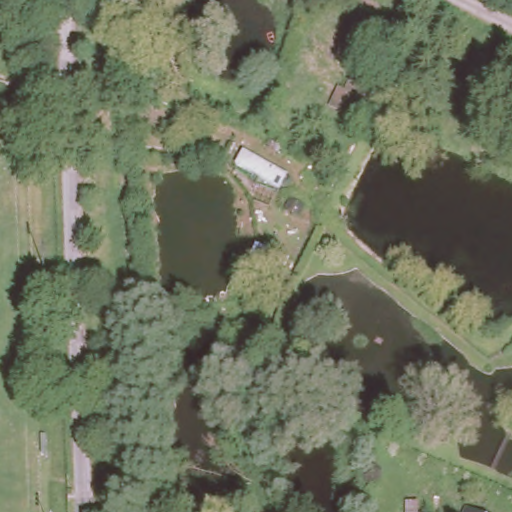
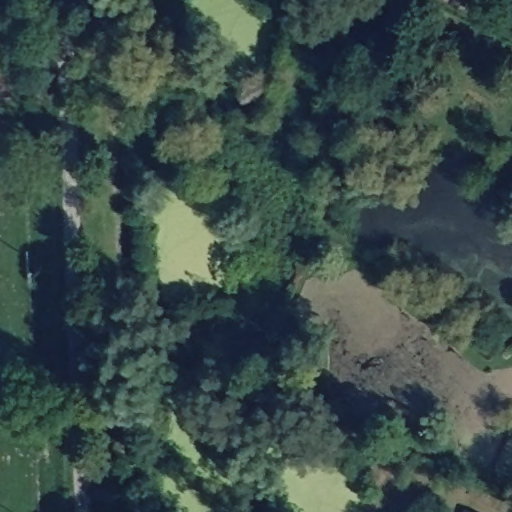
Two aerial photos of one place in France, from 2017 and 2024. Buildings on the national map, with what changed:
unchanged [(335,83),(343,86),(353,69),(381,81),(362,123),(325,106),(335,83)]
unchanged [(274,97),(292,104),(288,118),(279,115),(272,134),(260,129),(274,97)]
unchanged [(242,145),(289,173),(280,189),(232,162),(242,145)]
unchanged [(253,236),(295,255),(285,276),(243,256),(253,236)]
unchanged [(484,512),(463,512),(466,504),(484,512)]

